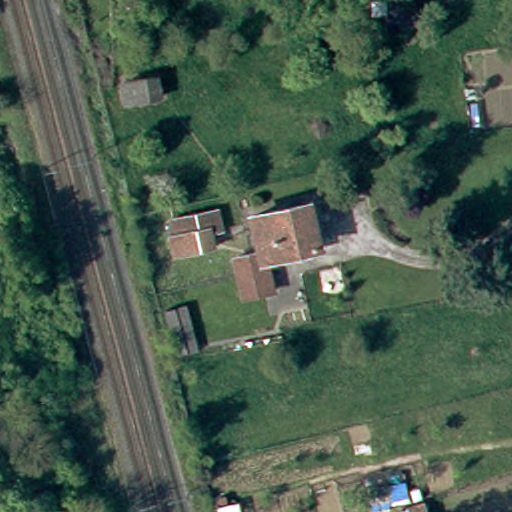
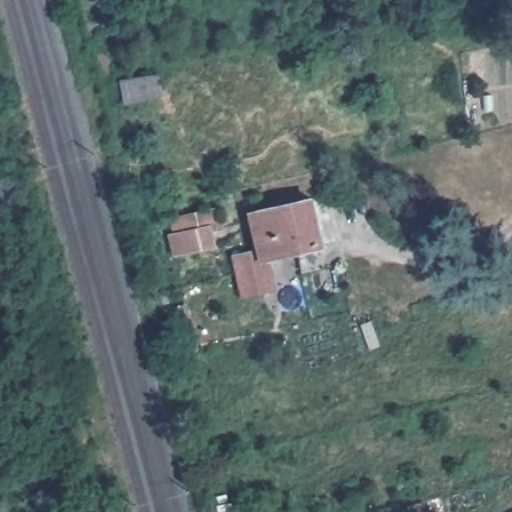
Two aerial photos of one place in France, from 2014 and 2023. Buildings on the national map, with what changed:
unchanged [(159,72),(163,94),(126,100),(123,78),(159,72)]
unchanged [(324,243),(268,257),(274,287),(245,294),(239,272),(236,256),(261,249),(253,212),(312,199),(315,209),(324,243)]
unchanged [(213,230),(216,244),(176,251),(173,236),(173,234),(169,217),(219,206),(224,226),(213,230)]
unchanged [(171,356),(162,313),(183,308),(198,351),(171,356)]

